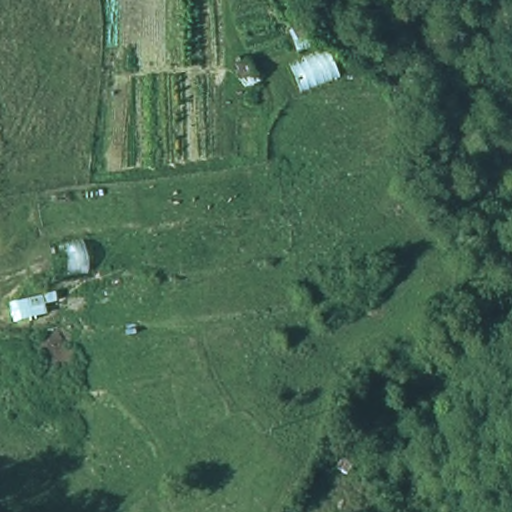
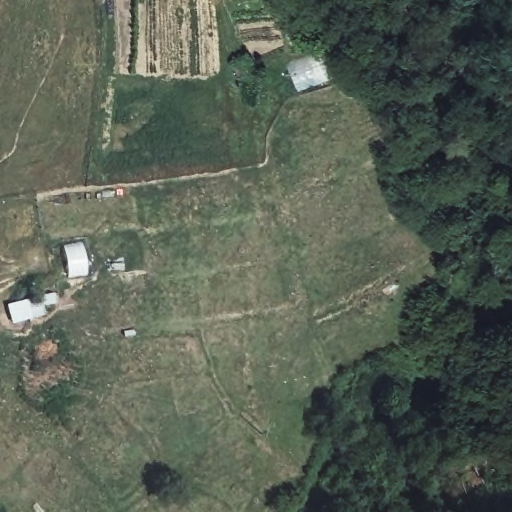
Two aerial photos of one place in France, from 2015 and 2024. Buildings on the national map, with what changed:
unchanged [(287,59),(329,43),(341,78),(305,86),(287,59)]
unchanged [(53,299),(55,318),(25,324),(20,305),(53,299)]

